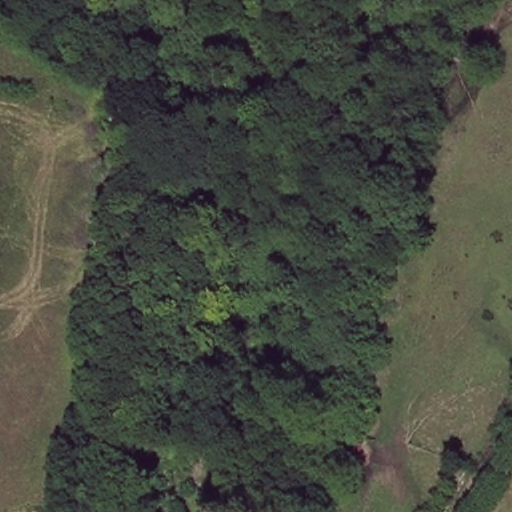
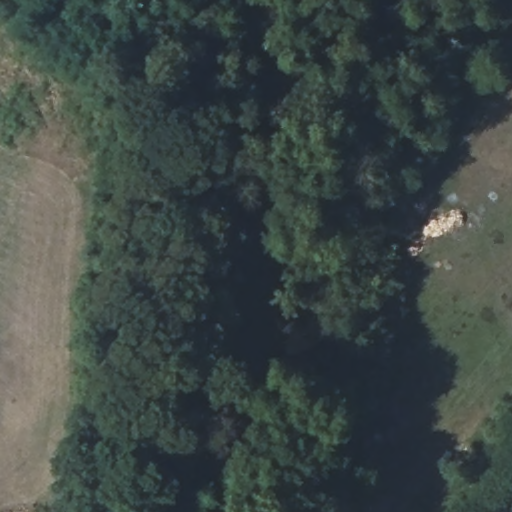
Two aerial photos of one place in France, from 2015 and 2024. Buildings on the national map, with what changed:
[]

